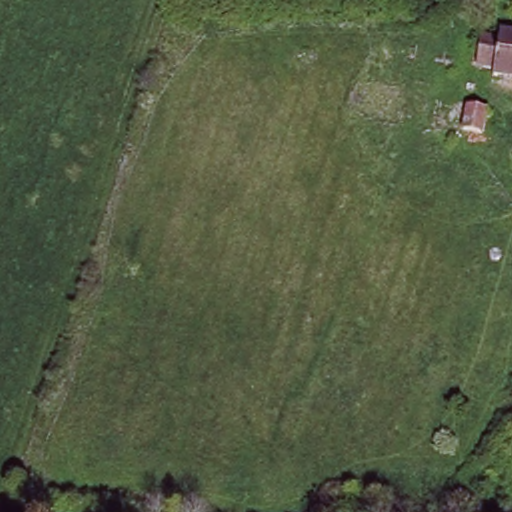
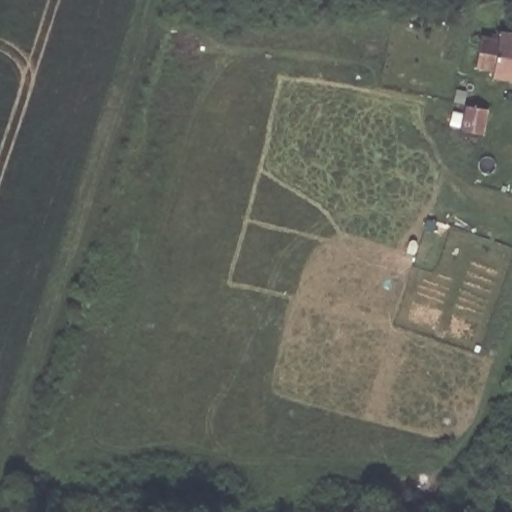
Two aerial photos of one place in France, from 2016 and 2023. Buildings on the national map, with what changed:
unchanged [(504,38),(506,30),(510,31),(512,31),(512,78),(499,76),(500,68),(483,65),(488,35),(504,38)]
unchanged [(469,104),(488,108),(483,134),(464,130),(469,104)]

